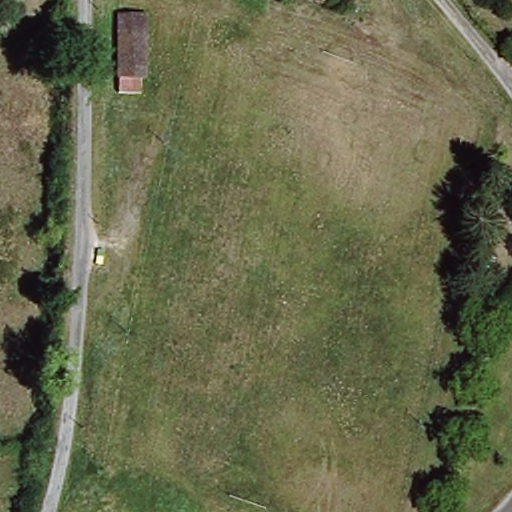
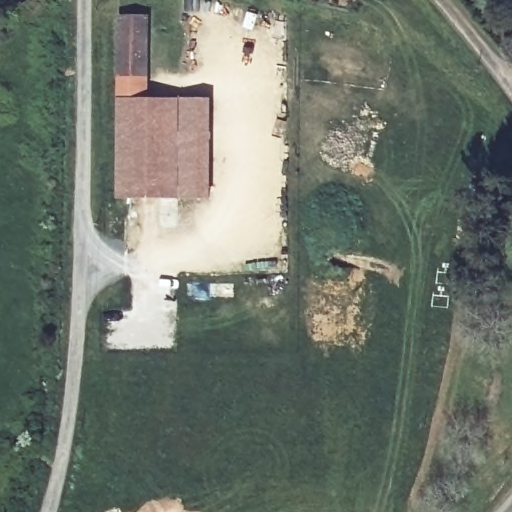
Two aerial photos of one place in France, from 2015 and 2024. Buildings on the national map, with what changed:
demolished [(147,64),(147,82),(124,82),(122,10),(152,10),(152,64),(147,64)]
new [(148,96),(211,97),(212,198),(117,199),(117,15),(150,14),(148,96)]

